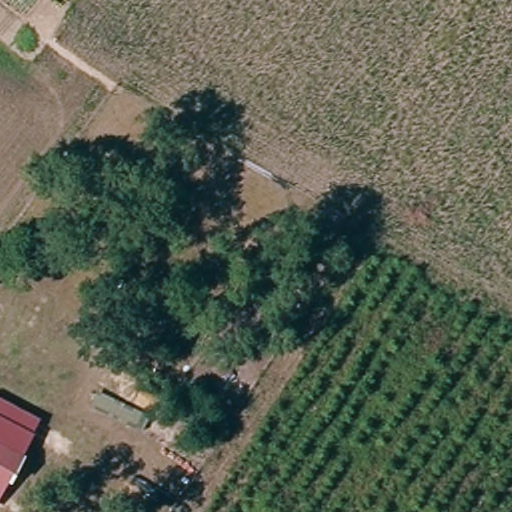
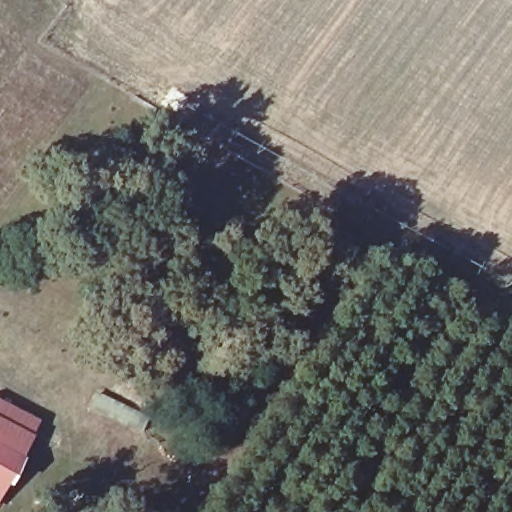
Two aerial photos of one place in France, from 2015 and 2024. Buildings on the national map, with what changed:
unchanged [(1,497),(0,496),(0,409),(36,426),(1,497)]

